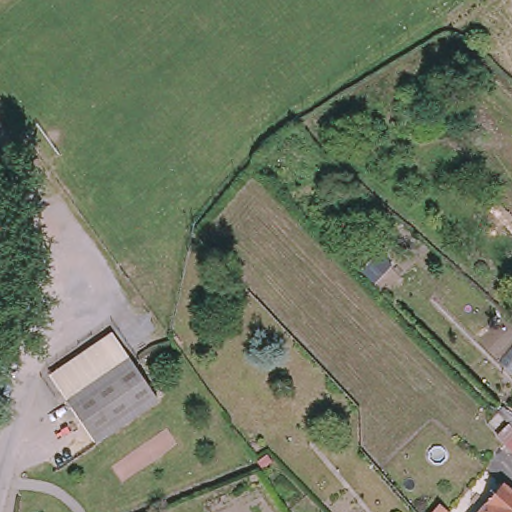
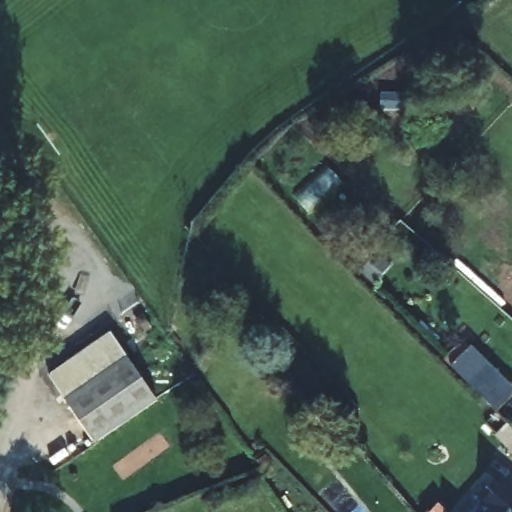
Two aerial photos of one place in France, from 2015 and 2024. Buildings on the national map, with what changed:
unchanged [(48,374),(112,332),(130,361),(68,405),(48,374)]
new [(512,383),(512,396),(499,411),(451,367),(471,346),(512,383)]
unchanged [(130,361),(156,400),(92,442),(68,405),(130,361)]
unchanged [(505,420),(507,422),(512,426),(512,452),(493,436),(505,420)]
unchanged [(457,471),(471,483),(448,512),(427,512),(457,471)]
unchanged [(498,484),(512,497),(512,512),(477,512),(498,484)]

